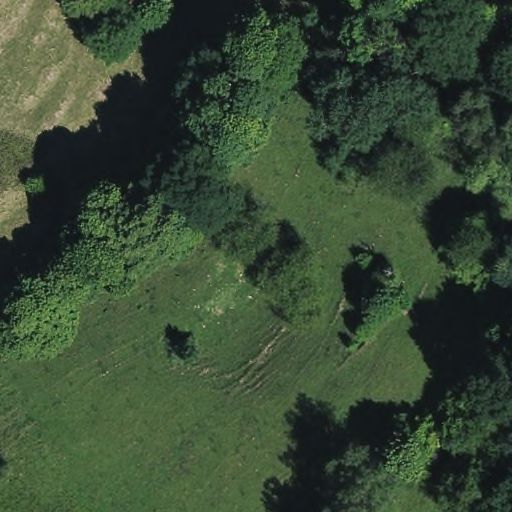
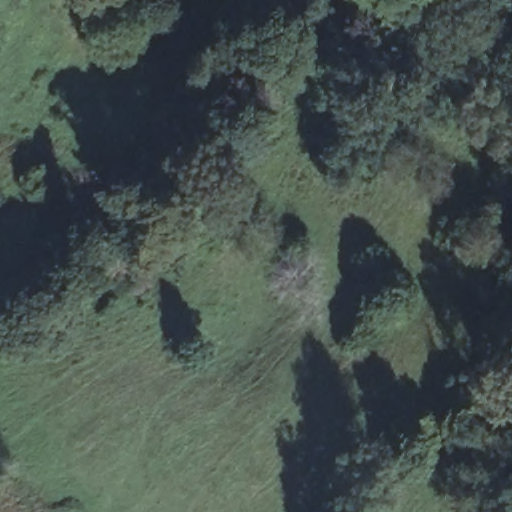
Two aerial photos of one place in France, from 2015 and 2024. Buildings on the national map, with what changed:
unchanged [(128,21),(88,6),(90,0),(136,0),(128,21)]

